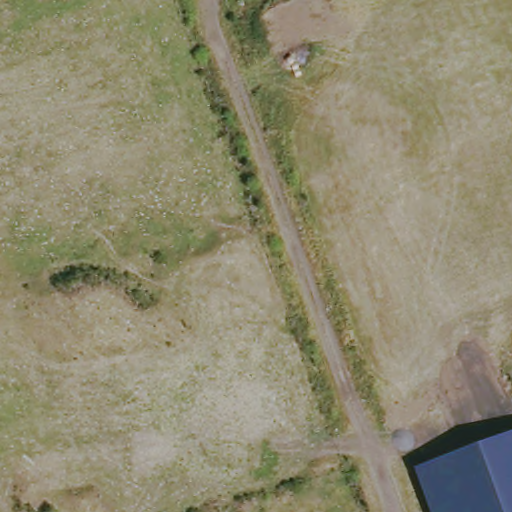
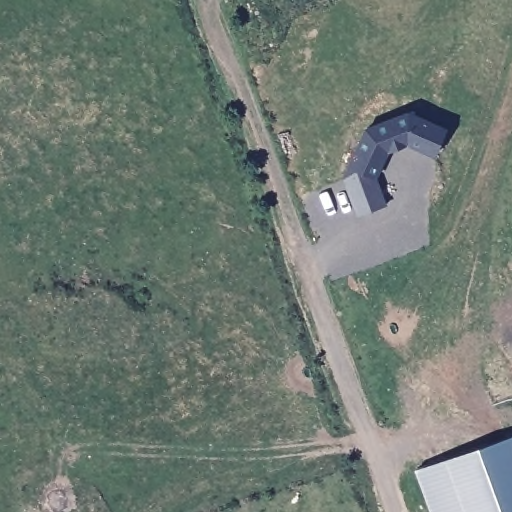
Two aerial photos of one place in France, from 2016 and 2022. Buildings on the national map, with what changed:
new [(446,130),(435,155),(407,144),(388,151),(376,178),(386,204),(358,215),(343,177),(348,165),(366,126),(409,111),(446,130)]
unchanged [(512,433),(512,512),(434,512),(417,467),(512,433)]

